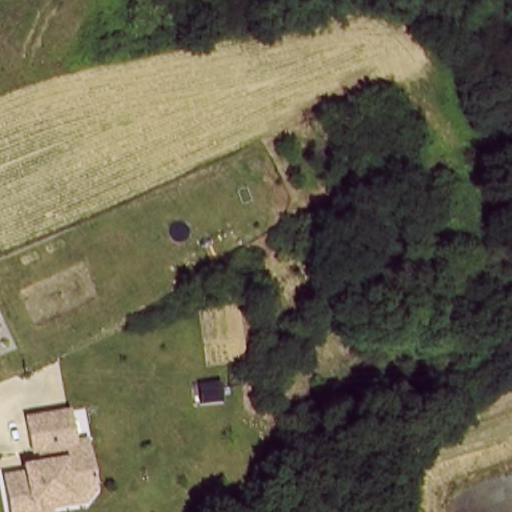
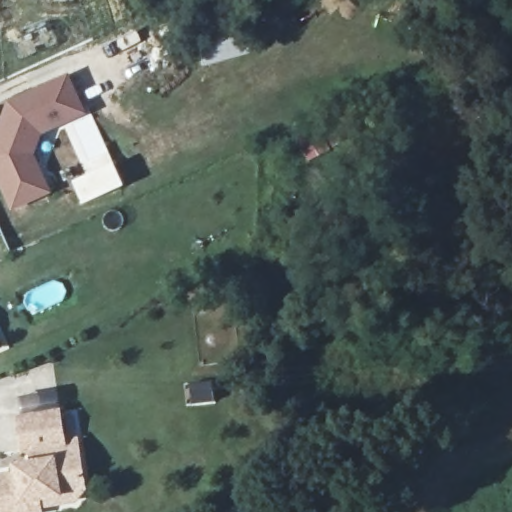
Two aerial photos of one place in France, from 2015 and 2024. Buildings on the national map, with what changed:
new [(88,115),(44,137),(35,158),(54,194),(13,215),(0,187),(0,125),(8,103),(70,75),(88,115)]
unchanged [(15,464),(29,461),(27,447),(21,448),(15,417),(57,409),(62,440),(74,438),(81,481),(82,486),(73,497),(37,504),(38,506),(38,511),(36,512),(0,512),(0,474),(15,471),(15,464)]

